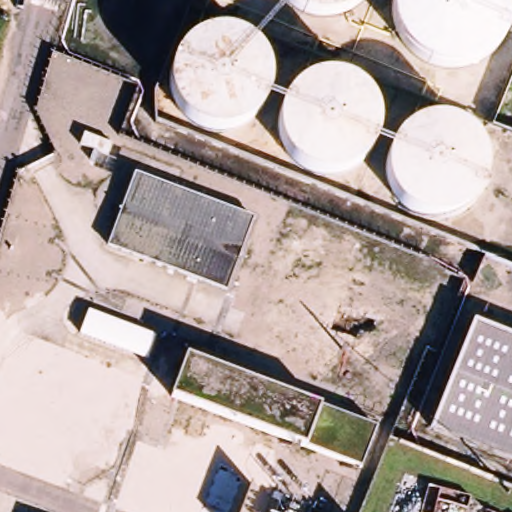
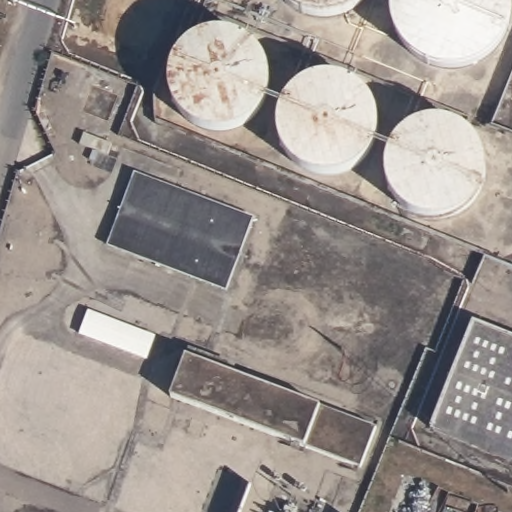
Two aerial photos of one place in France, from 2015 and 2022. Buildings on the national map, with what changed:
unchanged [(104,244),(131,173),(250,218),(221,289),(104,244)]
unchanged [(77,335),(85,310),(151,336),(141,359),(77,335)]
unchanged [(430,411),(483,310),(512,326),(512,455),(430,411)]
unchanged [(165,396),(181,355),(373,426),(358,468),(165,396)]

